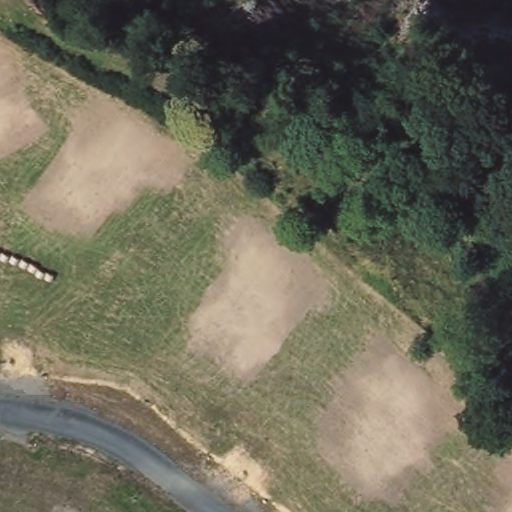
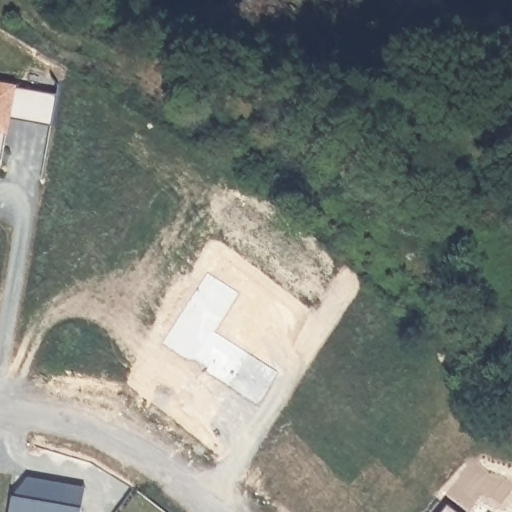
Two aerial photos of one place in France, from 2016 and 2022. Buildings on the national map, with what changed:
new [(17,84),(15,88),(56,94),(50,123),(11,117),(8,136),(3,134),(0,156),(0,81),(17,84)]
new [(27,476),(85,486),(81,512),(9,512),(12,493),(27,476)]
new [(445,512),(448,507),(454,512),(445,512)]

